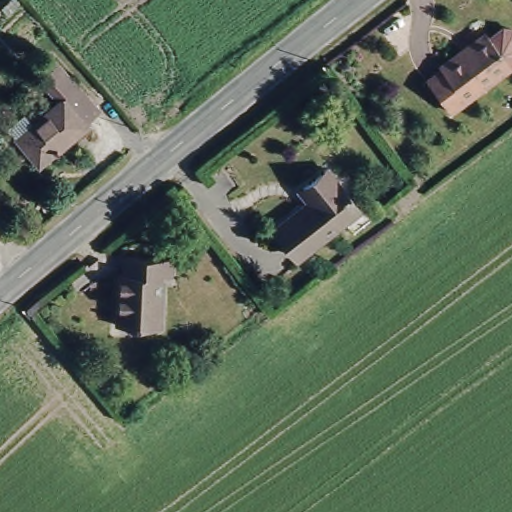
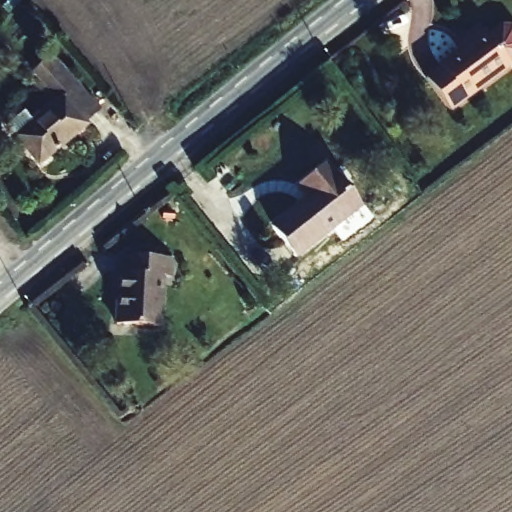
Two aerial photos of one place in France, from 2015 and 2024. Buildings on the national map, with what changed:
unchanged [(428,81),(443,70),(441,67),(462,52),(488,34),(490,37),(492,39),(505,30),(512,30),(512,65),(511,66),(512,67),(512,68),(450,112),(428,81)]
unchanged [(20,115),(29,125),(55,103),(37,83),(30,76),(47,59),(55,68),(97,112),(82,125),(83,127),(35,168),(12,140),(2,129),(20,115)]
unchanged [(310,199),(300,187),(328,165),(360,207),(298,256),(275,226),(310,199)]
unchanged [(168,261),(172,264),(171,274),(169,277),(163,277),(159,329),(115,326),(119,276),(125,272),(125,257),(168,261)]

